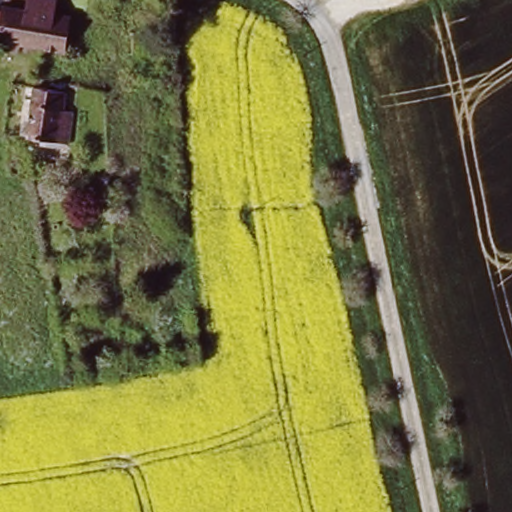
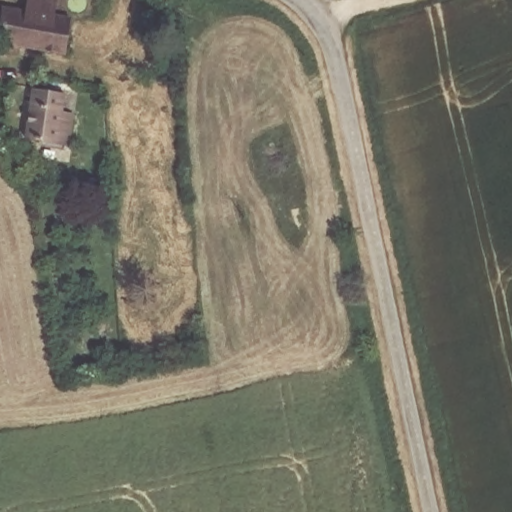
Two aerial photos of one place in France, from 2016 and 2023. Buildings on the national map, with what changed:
unchanged [(80,1),(75,21),(69,56),(52,53),(0,43),(0,36),(1,30),(0,30),(0,8),(47,16),(50,0),(75,0),(80,1)]
unchanged [(69,140),(29,132),(35,104),(38,88),(67,93),(64,110),(74,111),(69,140)]

